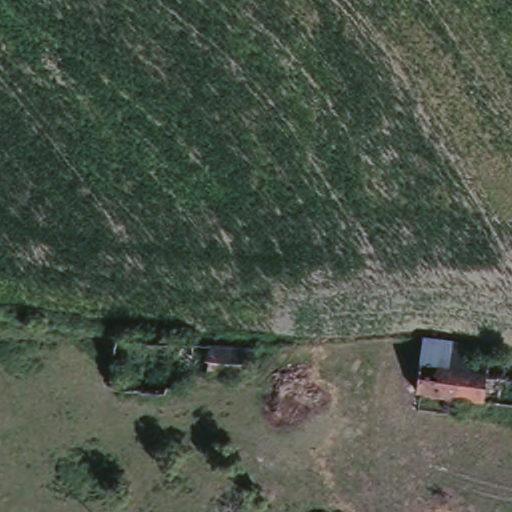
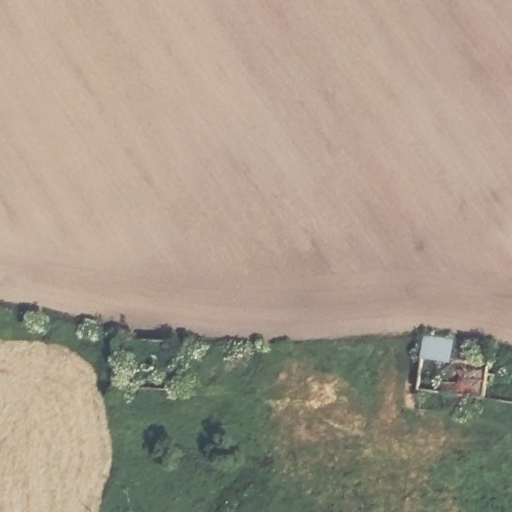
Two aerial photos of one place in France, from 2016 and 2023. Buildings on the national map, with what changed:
unchanged [(446,395),(417,391),(425,338),(492,348),(491,352),(512,355),(512,404),(463,398),(460,411),(443,408),(446,395)]

